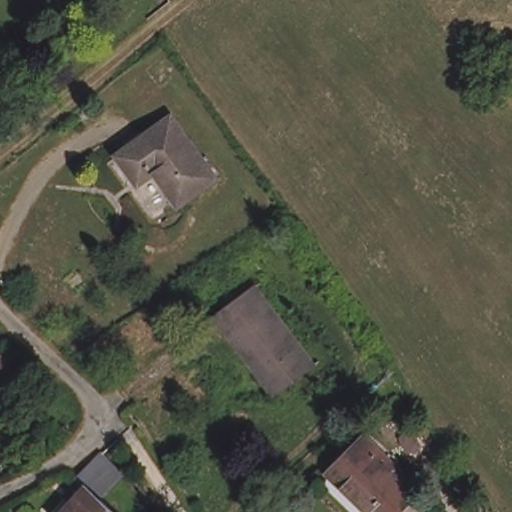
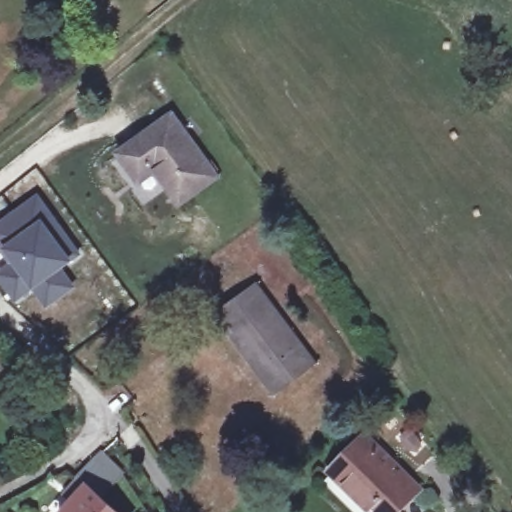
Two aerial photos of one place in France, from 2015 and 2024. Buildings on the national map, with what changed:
unchanged [(177,110),(222,172),(186,198),(158,160),(142,172),(125,149),(177,110)]
new [(32,290),(14,303),(0,283),(0,267),(7,262),(0,253),(0,218),(38,190),(84,253),(74,260),(64,267),(77,286),(46,309),(32,290)]
unchanged [(250,361),(216,314),(256,285),(290,330),(314,363),(307,368),(280,388),(274,392),(250,361)]
unchanged [(10,399),(2,389),(2,373),(0,371),(0,349),(29,384),(10,399)]
unchanged [(425,489),(402,512),(377,512),(336,472),(370,436),(425,489)]
unchanged [(72,512),(79,505),(70,496),(85,480),(95,469),(109,456),(124,471),(129,475),(107,499),(122,512),(72,512)]

